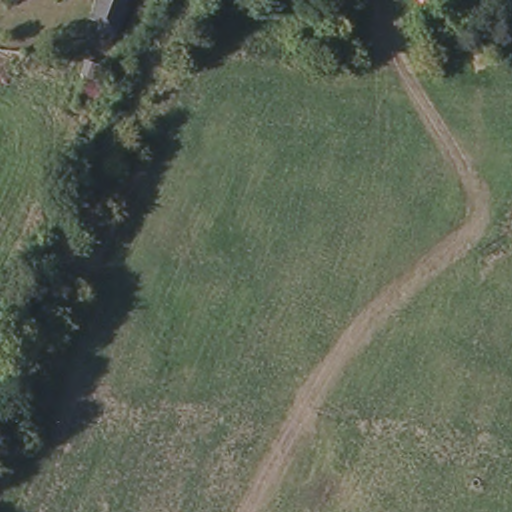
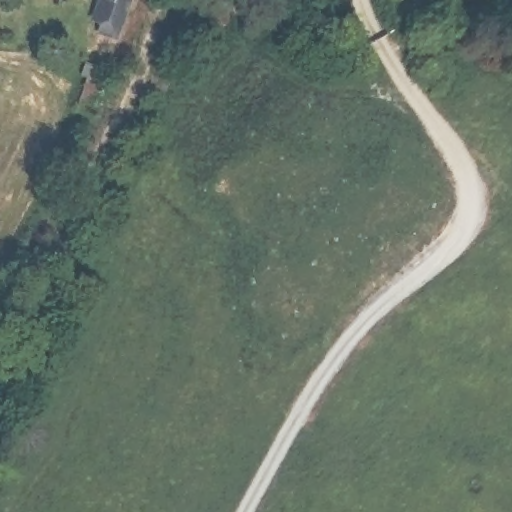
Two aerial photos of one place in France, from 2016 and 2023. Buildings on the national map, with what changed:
unchanged [(96,5),(98,0),(125,0),(116,29),(100,23),(105,7),(96,5)]
unchanged [(103,64),(87,111),(72,105),(89,57),(103,64)]

